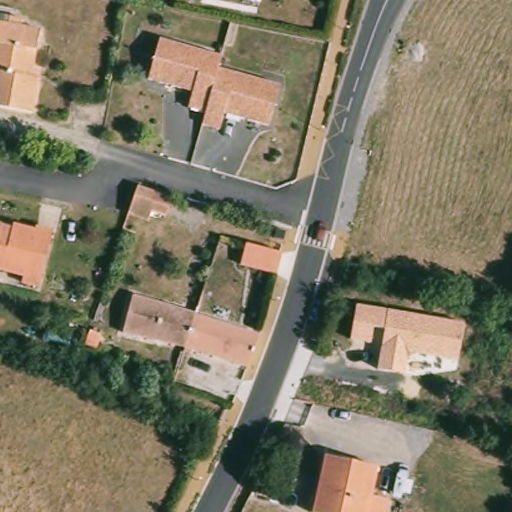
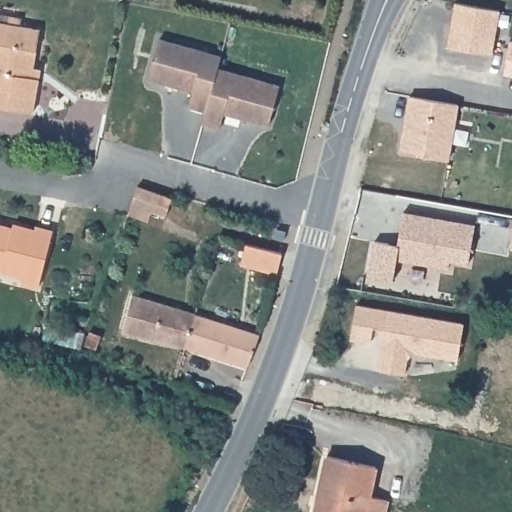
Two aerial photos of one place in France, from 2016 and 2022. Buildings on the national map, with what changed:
new [(455,2),(499,9),(492,53),(453,47),(448,46),(451,27),(455,2)]
unchanged [(37,81),(31,116),(0,111),(0,24),(37,31),(31,70),(38,71),(37,81)]
unchanged [(221,52),(218,64),(207,109),(190,104),(194,88),(148,78),(158,37),(221,52)]
new [(512,40),(512,75),(505,74),(511,40),(512,40)]
unchanged [(218,64),(280,79),(271,120),(226,109),(222,125),(205,120),(207,109),(218,64)]
new [(450,159),(399,151),(408,95),(459,103),(450,159)]
unchanged [(126,214),(128,209),(129,206),(136,187),(171,198),(165,217),(150,213),(147,222),(126,214)]
new [(468,264),(450,261),(448,270),(396,259),(393,281),(368,277),(374,241),(399,246),(404,211),(475,223),(468,264)]
unchanged [(23,280),(0,274),(0,231),(10,234),(11,230),(33,236),(34,232),(52,237),(38,292),(21,288),(23,280)]
new [(512,235),(512,247),(510,247),(512,235)]
unchanged [(244,244),(282,254),(276,275),(239,265),(244,244)]
unchanged [(127,338),(136,300),(200,319),(190,353),(127,338)]
unchanged [(458,360),(415,353),(407,358),(404,372),(376,368),(382,329),(371,327),(368,343),(349,340),(356,303),(464,321),(458,360)]
unchanged [(264,340),(251,373),(190,353),(200,319),(264,340)]
unchanged [(95,349),(83,345),(88,331),(100,335),(95,349)]
unchanged [(327,456),(375,467),(369,496),(387,500),(385,512),(314,512),(327,456)]

